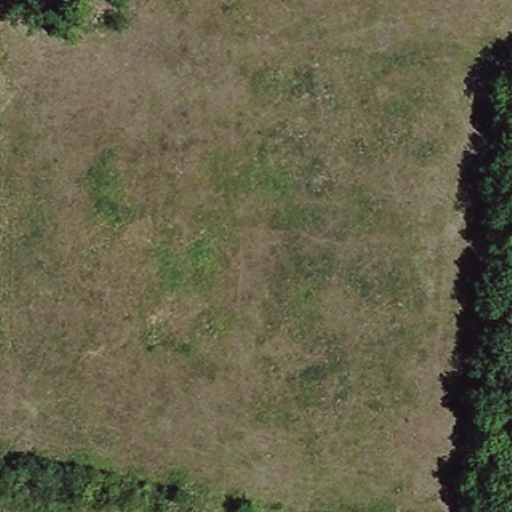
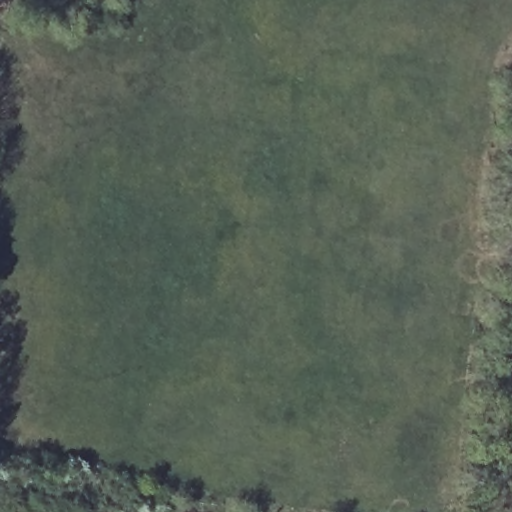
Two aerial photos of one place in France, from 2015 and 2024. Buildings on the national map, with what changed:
[]

